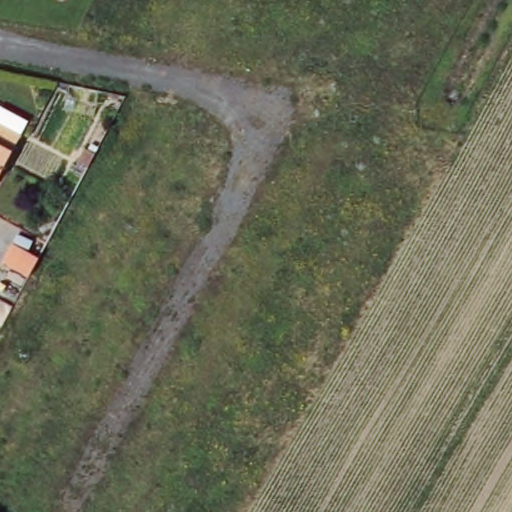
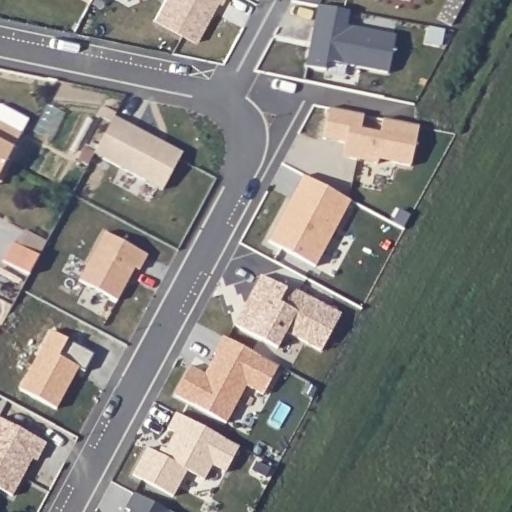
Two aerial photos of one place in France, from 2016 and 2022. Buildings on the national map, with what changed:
new [(219,7),(215,4),(196,44),(154,22),(165,0),(223,0),(219,7)]
new [(318,5),(349,11),(346,26),(396,35),(388,73),(327,61),(325,70),(306,66),(318,5)]
new [(345,143),(322,139),(329,110),(364,117),(362,129),(382,133),(383,121),(419,127),(412,167),(378,160),(377,165),(342,158),(345,143)]
new [(183,152),(163,191),(94,155),(114,118),(183,152)]
unchanged [(21,139),(17,145),(0,178),(0,127),(21,139)]
new [(303,175),(316,183),(350,201),(315,267),(268,241),(291,198),(303,175)]
new [(104,233),(146,255),(138,270),(134,268),(116,301),(78,281),(104,233)]
unchanged [(25,279),(0,265),(0,262),(8,246),(34,260),(25,279)]
new [(286,288),(287,285),(340,314),(321,353),(287,334),(279,350),(234,327),(260,276),(286,288)]
new [(94,354),(84,372),(78,370),(56,410),(19,389),(51,331),(94,354)]
new [(189,366),(204,374),(215,354),(213,354),(222,337),(278,366),(262,395),(245,386),(225,423),(173,395),(189,366)]
new [(157,453),(161,445),(166,449),(174,432),(167,429),(175,413),(240,448),(226,475),(212,468),(204,483),(186,472),(172,498),(132,475),(147,449),(157,453)]
new [(46,444),(36,463),(31,460),(12,497),(0,490),(0,420),(46,444)]
new [(124,510),(134,492),(169,512),(129,512),(129,511),(124,510)]

